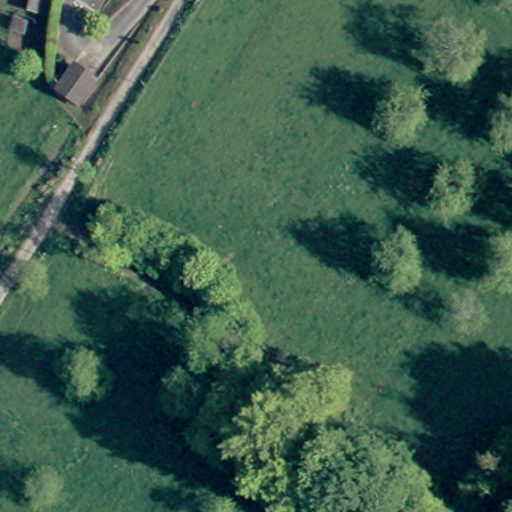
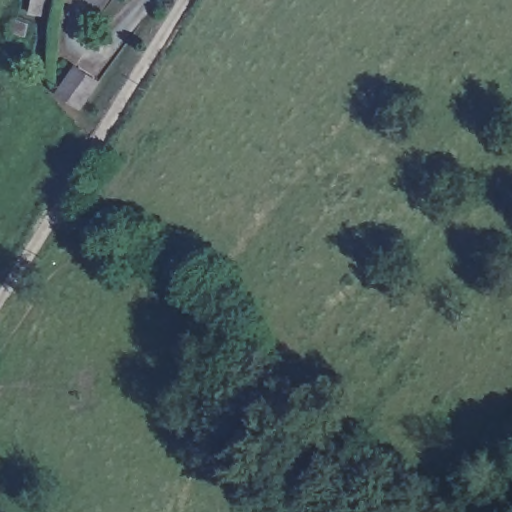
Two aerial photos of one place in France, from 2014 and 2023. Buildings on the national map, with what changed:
unchanged [(18,8),(20,0),(46,0),(42,15),(18,8)]
unchanged [(57,91),(70,73),(92,89),(81,108),(57,91)]

